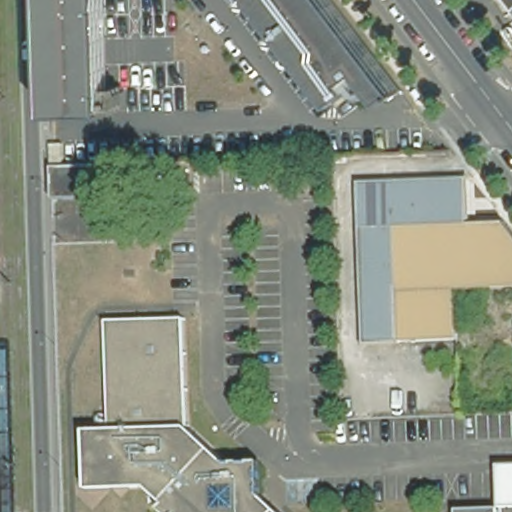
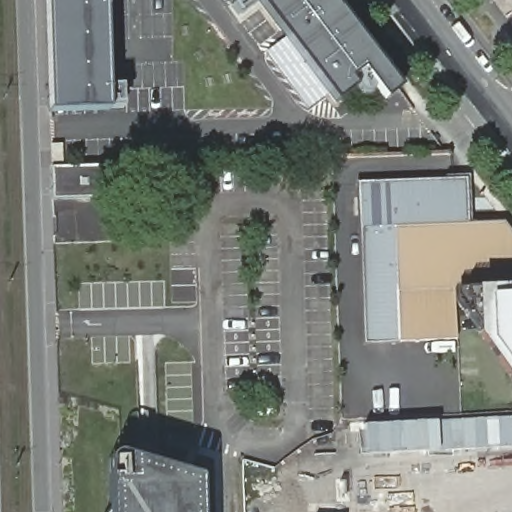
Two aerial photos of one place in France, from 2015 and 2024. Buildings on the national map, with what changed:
unchanged [(49,95),(48,74),(47,60),(46,24),(46,16),(46,6),(46,0),(105,0),(105,14),(108,115),(49,117),(49,95)]
unchanged [(379,65),(351,86),(356,92),(335,108),(260,9),(254,0),(330,0),(335,7),(379,65)]
unchanged [(187,163),(187,198),(52,202),(51,168),(187,163)]
unchanged [(364,344),(357,183),(465,180),(466,222),(393,226),(398,343),(364,344)]
unchanged [(393,226),(466,222),(466,225),(503,222),(512,233),(512,287),(455,290),(457,341),(398,343),(393,226)]
new [(455,301),(455,296),(455,290),(512,287),(512,382),(455,301)]
demolished [(106,321),(184,318),(187,424),(160,425),(110,427),(106,321)]
new [(364,426),(512,417),(512,446),(366,455),(364,426)]
demolished [(160,425),(187,424),(187,427),(226,463),(262,496),(279,512),(165,512),(161,509),(165,504),(147,487),(112,488),(110,430),(110,427),(160,425)]
demolished [(499,508),(498,465),(512,464),(512,509),(503,511),(503,512),(457,512),(457,509),(499,508)]
new [(199,483),(200,512),(114,512),(113,486),(199,483)]

